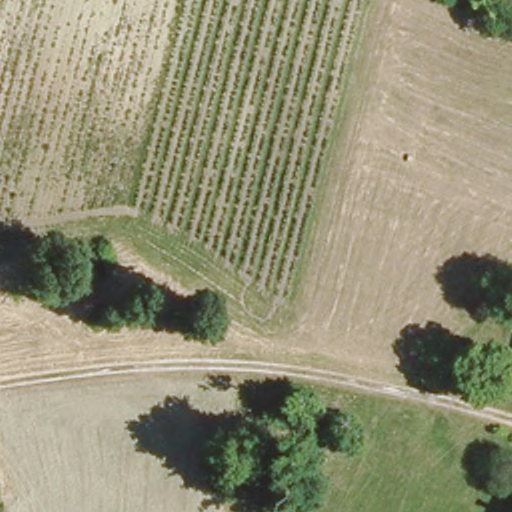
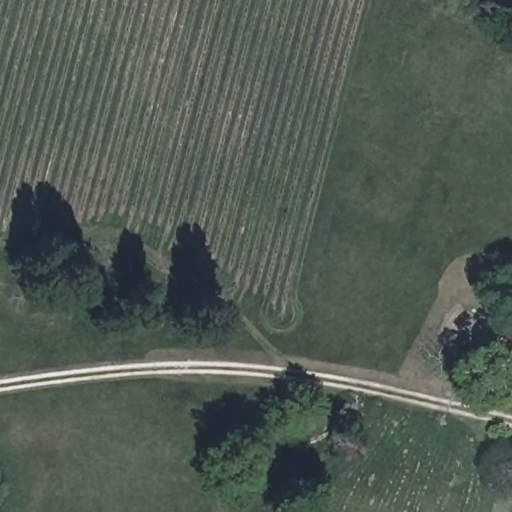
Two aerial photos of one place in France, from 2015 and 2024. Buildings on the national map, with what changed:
unchanged [(503,385),(512,368),(512,389),(503,385)]

